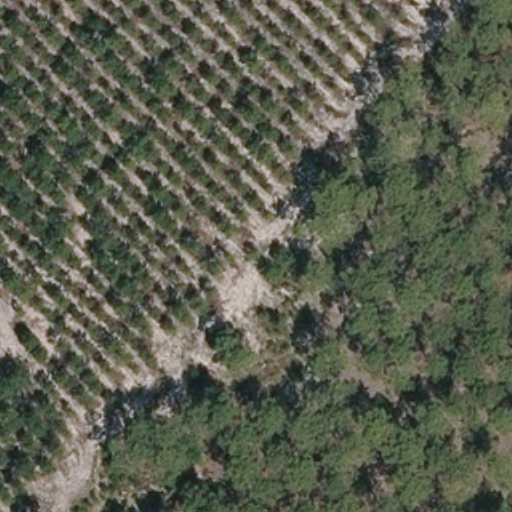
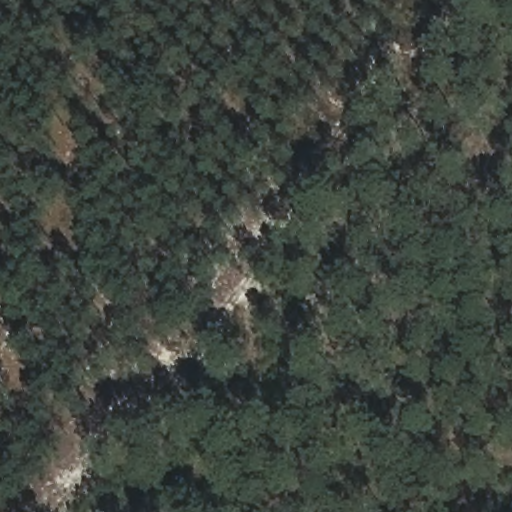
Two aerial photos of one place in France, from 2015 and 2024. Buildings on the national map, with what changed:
[]

